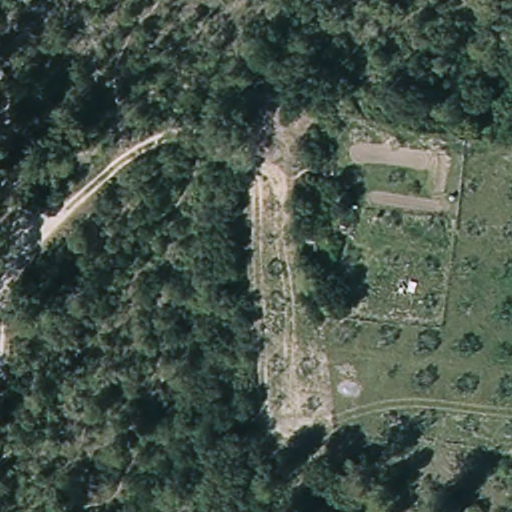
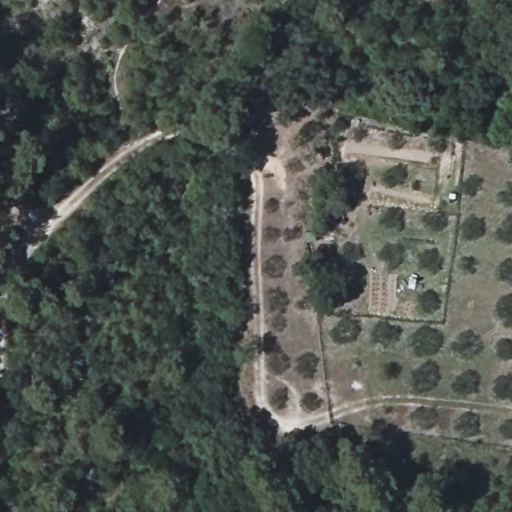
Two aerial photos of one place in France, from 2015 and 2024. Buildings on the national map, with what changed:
[]

